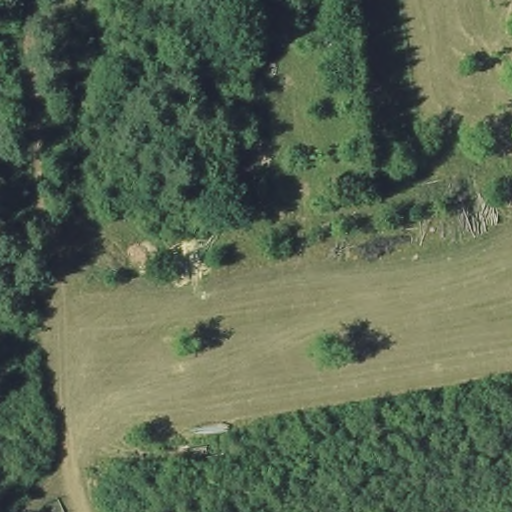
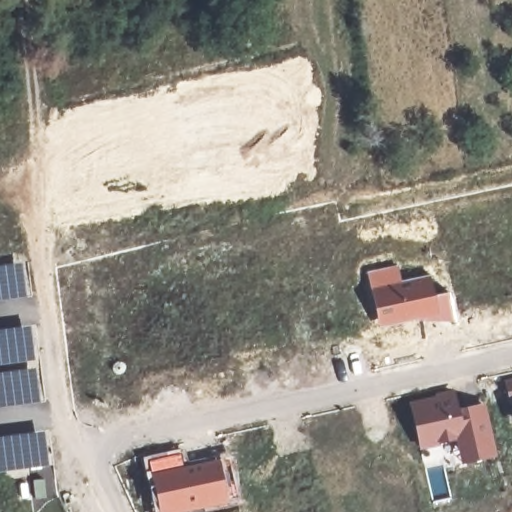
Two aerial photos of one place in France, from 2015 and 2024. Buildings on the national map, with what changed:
new [(398,263),(402,278),(430,273),(435,293),(448,291),(454,320),(415,321),(378,326),(366,271),(398,263)]
new [(25,298),(0,302),(0,273),(20,271),(25,298)]
new [(33,361),(0,365),(0,332),(27,330),(33,361)]
new [(37,402),(0,407),(0,375),(35,371),(37,402)]
new [(512,377),(512,398),(507,399),(503,378),(512,377)]
new [(460,395),(461,403),(485,402),(497,445),(461,454),(457,441),(418,448),(412,405),(460,395)]
new [(47,466),(0,471),(0,435),(43,428),(47,466)]
new [(184,465),(220,457),(228,503),(185,512),(157,512),(145,457),(180,450),(184,465)]

